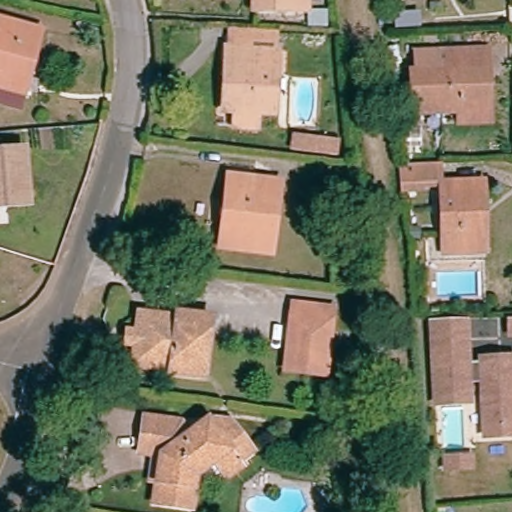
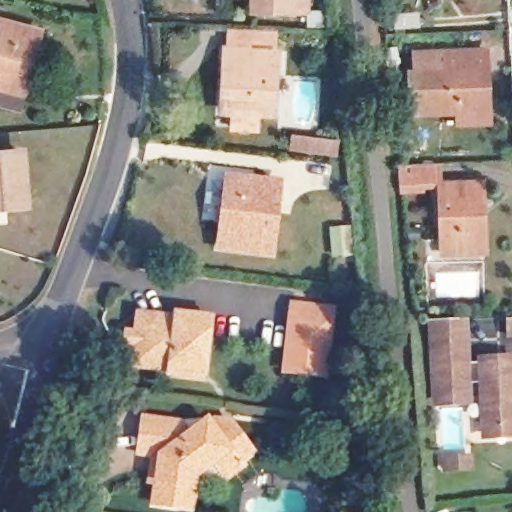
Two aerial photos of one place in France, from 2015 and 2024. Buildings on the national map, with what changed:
unchanged [(307,12),(294,11),(257,10),(257,0),(308,0),(307,12)]
unchanged [(0,89),(0,24),(42,35),(39,51),(32,77),(27,95),(0,89)]
unchanged [(243,118),(243,135),(219,134),(219,115),(213,115),(215,72),(215,55),(217,34),(263,36),(262,59),(259,119),(243,118)]
unchanged [(456,124),(456,112),(409,115),(407,75),(445,73),(443,53),(487,51),(490,110),(490,122),(456,124)]
unchanged [(29,205),(12,206),(0,207),(0,153),(25,151),(29,205)]
unchanged [(442,237),(438,183),(417,184),(417,192),(394,193),(393,184),(391,165),(438,163),(440,183),(460,182),(483,180),(485,205),(487,250),(443,253),(442,237)]
unchanged [(280,184),(272,253),(220,247),(222,224),(226,200),(228,178),(280,184)]
unchanged [(429,239),(430,250),(420,251),(418,239),(429,239)]
unchanged [(331,312),(323,380),(283,375),(291,308),(331,312)]
unchanged [(147,318),(179,323),(184,317),(213,322),(204,390),(177,385),(172,380),(144,375),(135,365),(137,348),(128,347),(130,337),(139,339),(141,322),(147,318)]
unchanged [(461,345),(464,345),(466,371),(480,371),(480,367),(510,365),(512,420),(512,431),(483,432),(481,380),(466,380),(467,400),(434,400),(431,322),(455,322),(460,322),(461,345)]
unchanged [(144,458),(146,438),(148,424),(175,427),(182,428),(191,440),(210,426),(212,430),(216,427),(229,428),(250,456),(238,465),(242,471),(225,485),(213,470),(196,483),(192,512),(188,512),(161,509),(163,490),(155,487),(157,461),(144,458)]
unchanged [(448,475),(448,463),(474,461),(475,473),(448,475)]

